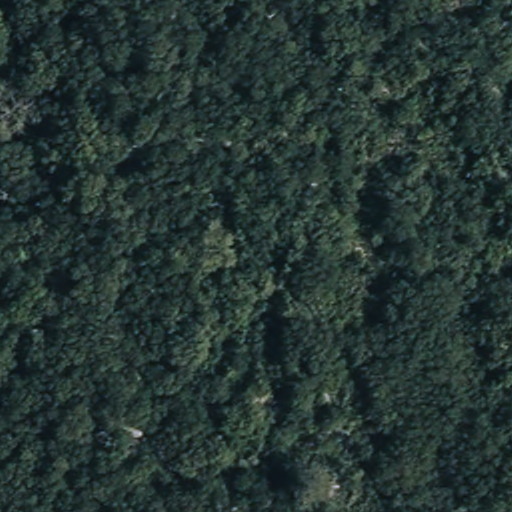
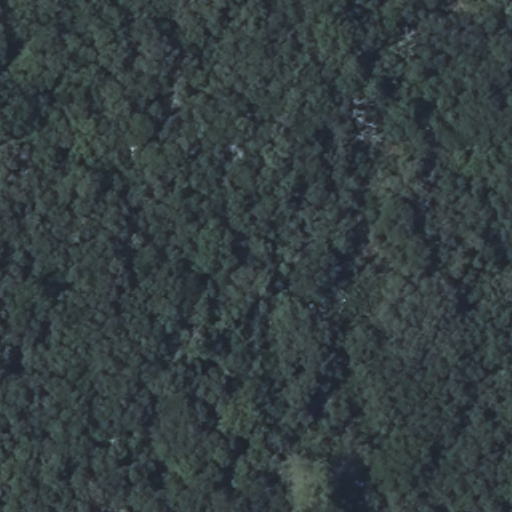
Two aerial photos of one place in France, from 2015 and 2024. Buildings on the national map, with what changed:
[]

